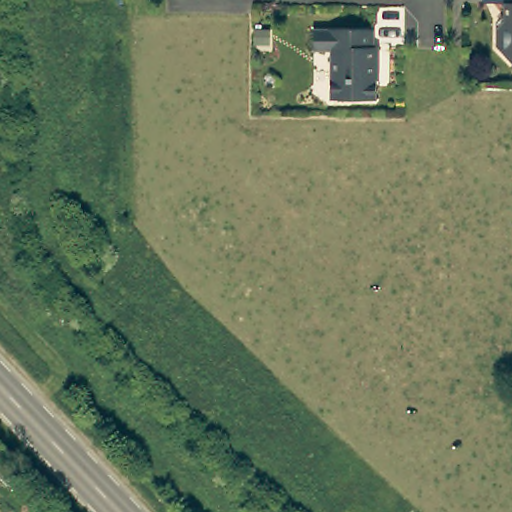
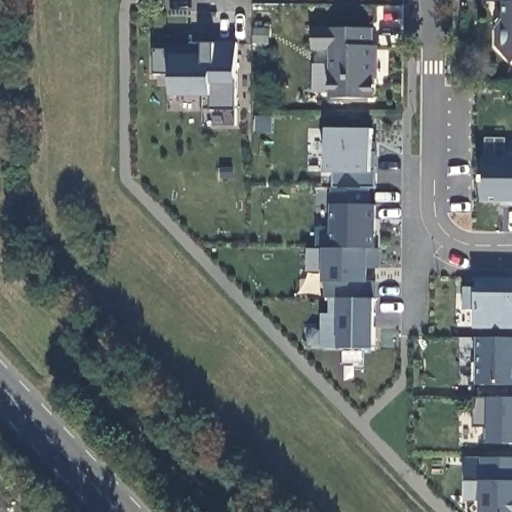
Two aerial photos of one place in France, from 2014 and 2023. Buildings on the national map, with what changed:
unchanged [(497,48),(498,29),(505,24),(508,16),(509,8),(508,4),(483,4),(483,0),(512,0),(512,63),(497,48)]
unchanged [(312,53),(312,33),(373,34),(372,50),(377,50),(377,72),(372,79),(373,102),(330,103),(329,54),(312,53)]
new [(192,51),(192,45),(205,46),(239,46),(238,113),(212,113),(212,97),(174,97),(174,77),(155,77),(156,51),(192,51)]
new [(374,130),(374,144),(380,144),(380,157),(378,157),(377,189),(370,189),(335,189),(335,172),(327,172),(328,129),(374,130)]
new [(490,158),(512,158),(512,203),(490,202),(490,158)]
new [(333,189),(335,189),(370,189),(370,206),(375,206),(375,249),(333,249),(333,189)]
new [(308,249),(333,249),(375,249),(379,249),(379,269),(368,269),(368,282),(376,282),(376,299),(331,299),(326,299),(326,272),(308,272),(308,249)]
new [(467,288),(479,288),(479,278),(512,279),(512,329),(478,328),(479,311),(466,311),(467,288)]
new [(323,315),(331,315),(331,299),(376,299),(375,350),(322,349),(323,315)]
new [(481,338),(512,339),(512,386),(480,385),(481,338)]
new [(475,398),(512,399),(512,445),(486,444),(486,428),(475,428),(475,398)]
new [(475,458),(512,459),(512,512),(483,512),(483,501),(468,501),(468,472),(468,458),(475,458)]

